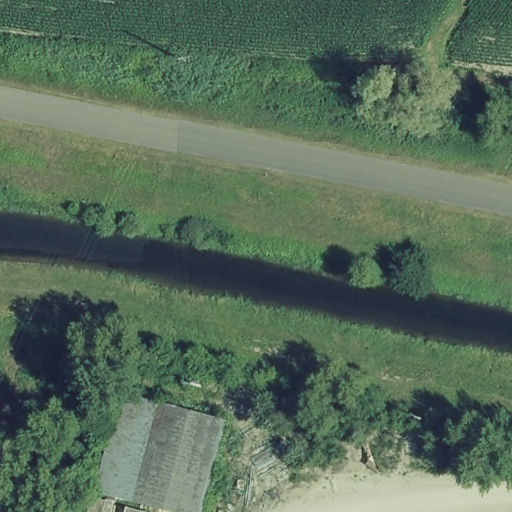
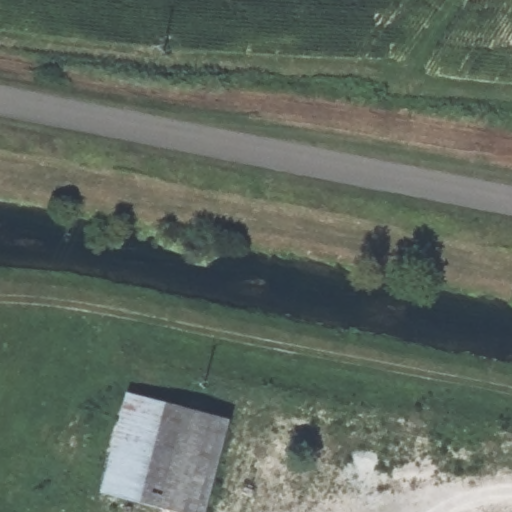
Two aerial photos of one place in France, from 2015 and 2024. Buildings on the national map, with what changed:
unchanged [(178,512),(104,497),(130,397),(234,426),(215,512),(178,512)]

